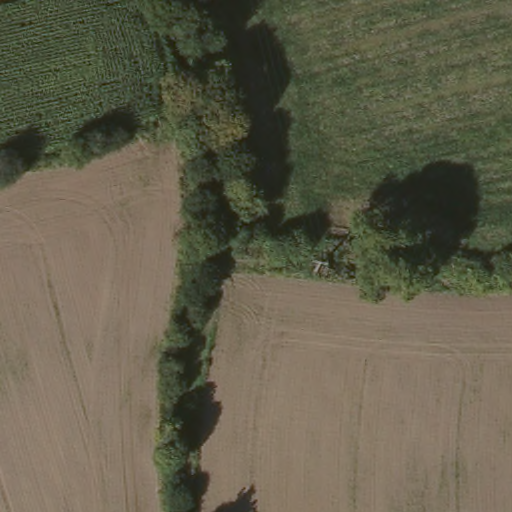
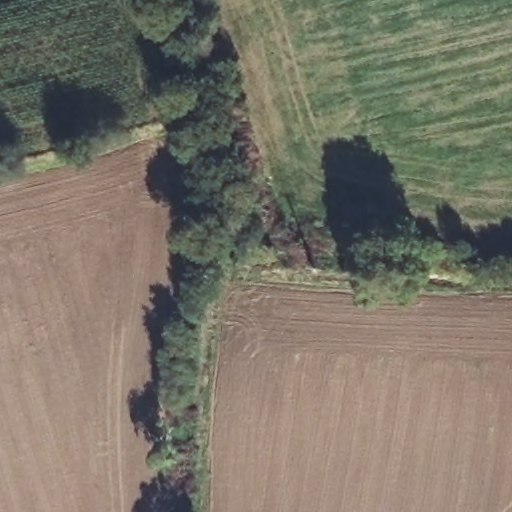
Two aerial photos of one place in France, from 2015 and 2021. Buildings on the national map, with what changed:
[]

